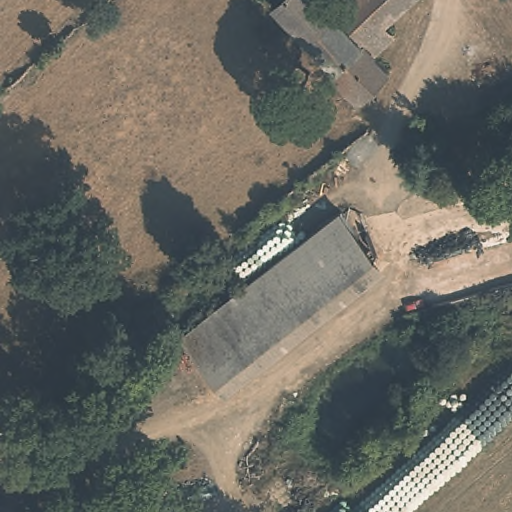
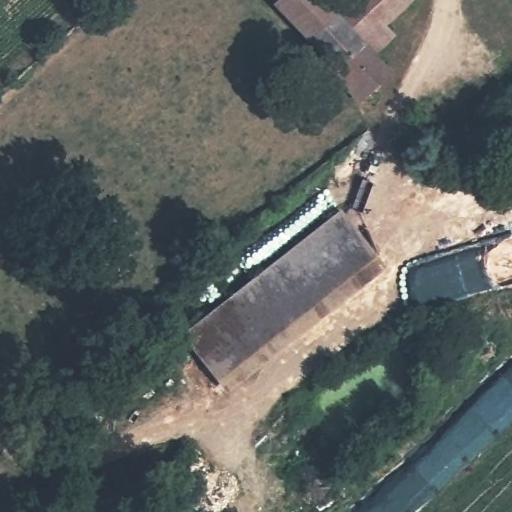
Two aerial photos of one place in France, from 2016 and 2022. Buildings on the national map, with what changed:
unchanged [(332,71),(336,68),(275,5),(280,0),(324,0),(337,14),(352,0),(410,0),(384,25),(394,36),(374,56),(389,71),(363,96),(359,100),(344,84),(332,71)]
unchanged [(188,341),(345,217),(380,261),(223,385),(188,341)]

